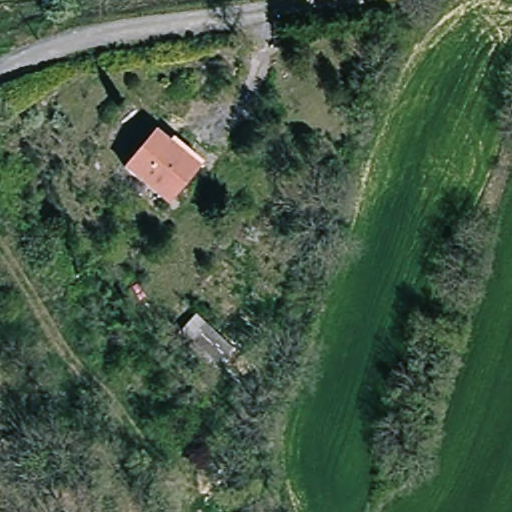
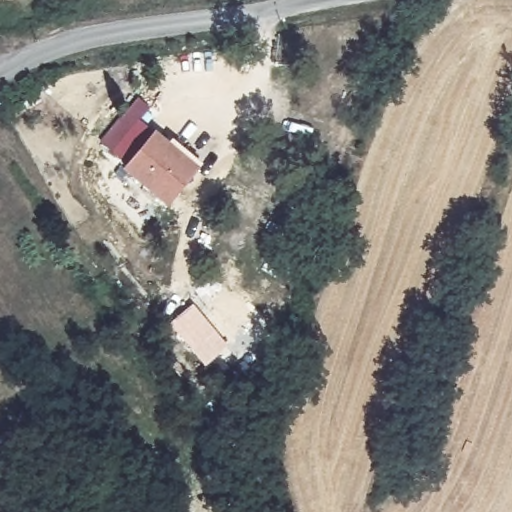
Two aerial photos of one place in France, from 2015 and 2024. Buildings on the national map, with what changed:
unchanged [(163,128),(178,144),(174,147),(199,172),(170,201),(130,160),(163,128)]
new [(170,323),(194,303),(230,347),(205,366),(170,323)]

